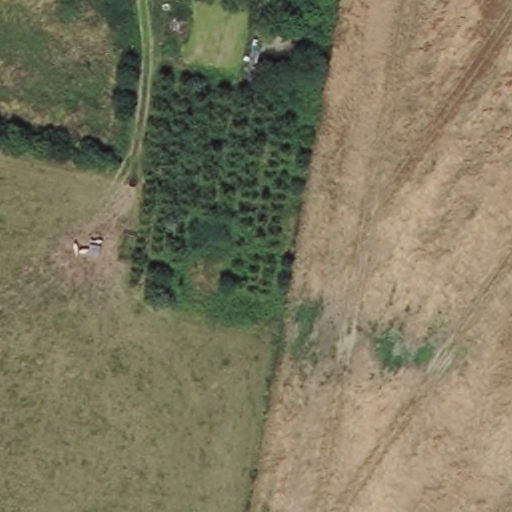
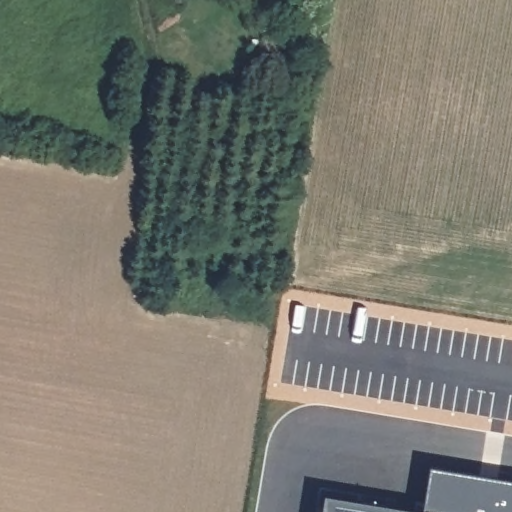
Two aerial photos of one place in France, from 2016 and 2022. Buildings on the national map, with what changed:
new [(431,468),(498,479),(512,482),(512,512),(424,512),(430,472),(431,468)]
new [(421,512),(323,512),(325,497),(421,512)]

